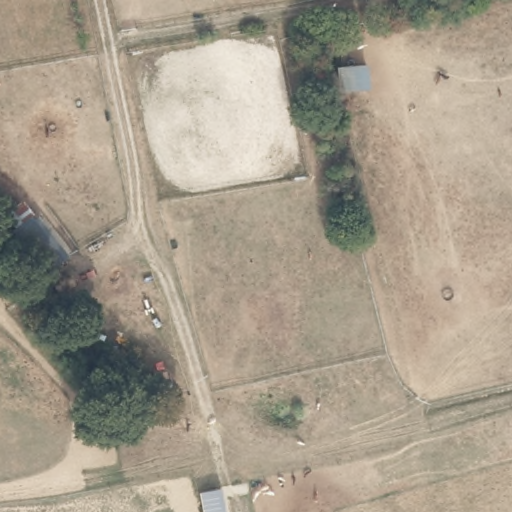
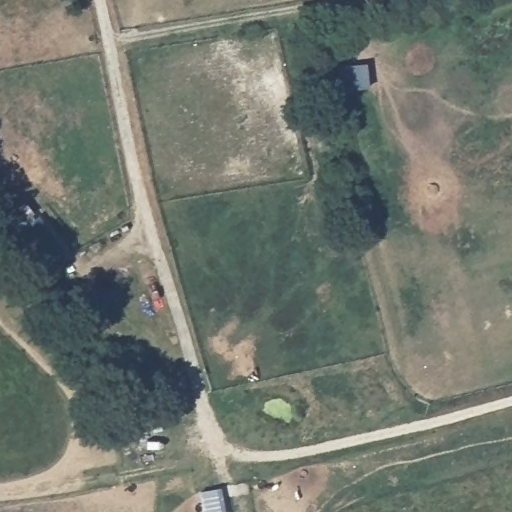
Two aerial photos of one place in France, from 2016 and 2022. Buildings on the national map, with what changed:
unchanged [(334,68),(366,69),(366,95),(335,96),(334,68)]
unchanged [(66,263),(44,281),(12,236),(31,221),(66,263)]
unchanged [(230,512),(202,512),(199,496),(227,492),(230,512)]

